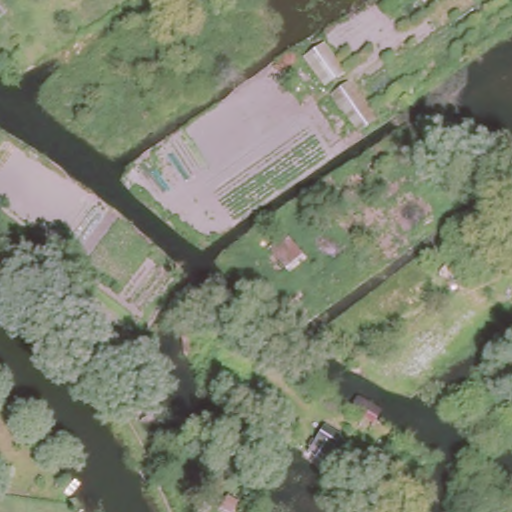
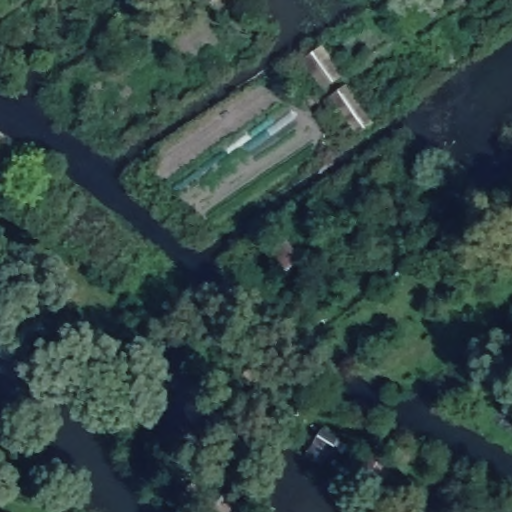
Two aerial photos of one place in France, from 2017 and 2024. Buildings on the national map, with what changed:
unchanged [(211,0),(222,0),(214,5),(211,0)]
unchanged [(299,55),(324,44),(342,72),(321,85),(299,55)]
unchanged [(372,120),(355,131),(330,94),(350,80),(372,120)]
unchanged [(289,241),(297,250),(282,265),(275,255),(289,241)]
unchanged [(25,300),(0,281),(0,279),(10,266),(36,287),(25,300)]
unchanged [(325,462),(305,451),(319,424),(342,432),(325,462)]

